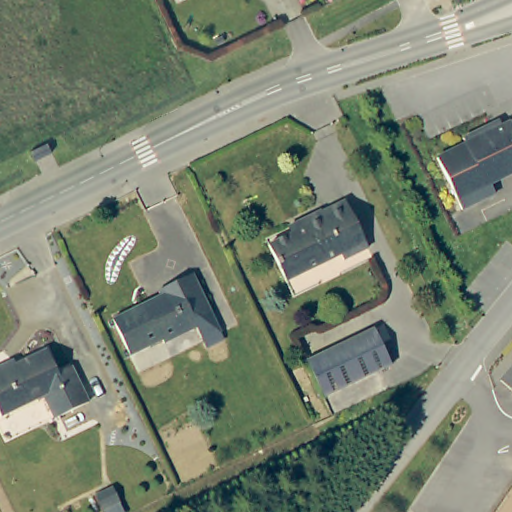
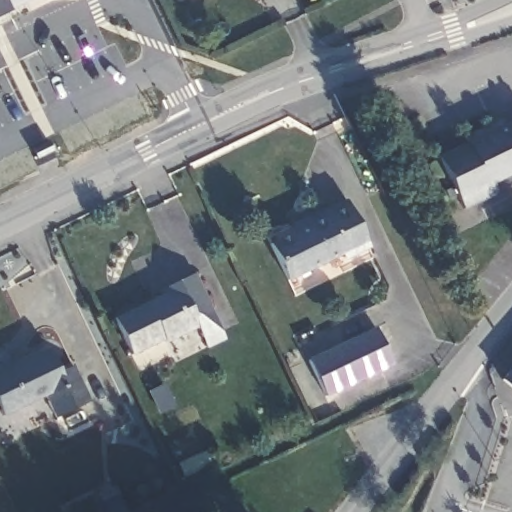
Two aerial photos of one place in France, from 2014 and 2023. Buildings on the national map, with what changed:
new [(0,0),(24,0),(0,12),(0,0)]
unchanged [(494,183),(499,194),(466,211),(440,158),(468,144),(466,138),(494,124),(497,129),(512,121),(512,174),(494,183)]
unchanged [(375,246),(348,259),(346,256),(291,284),(272,245),(295,233),(310,225),(307,220),(324,212),(324,208),(350,196),(375,246)]
unchanged [(212,309),(196,318),(201,328),(155,351),(152,347),(135,355),(118,320),(162,297),(160,291),(194,274),(212,309)]
unchanged [(393,367),(327,399),(308,365),(376,331),(393,367)]
unchanged [(75,371),(92,404),(60,420),(46,395),(1,419),(0,415),(0,373),(18,364),(22,371),(50,357),(60,376),(75,371)]
unchanged [(510,384),(512,380),(512,386),(510,384)]

